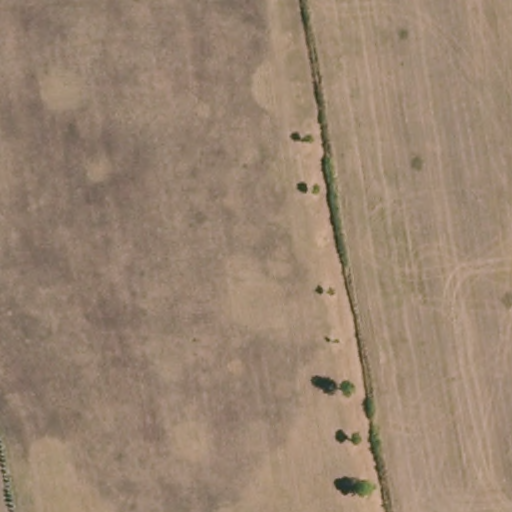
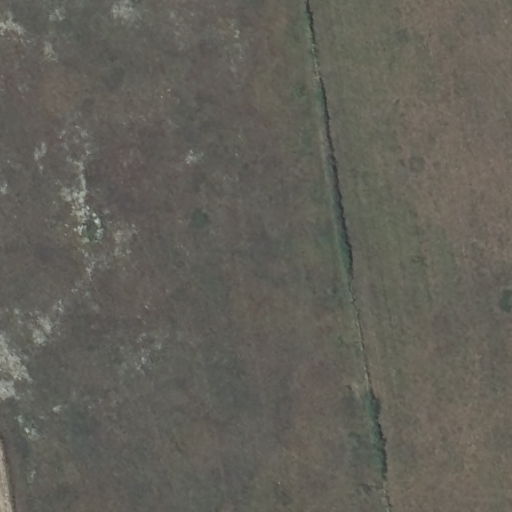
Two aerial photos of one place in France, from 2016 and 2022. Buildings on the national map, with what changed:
[]

